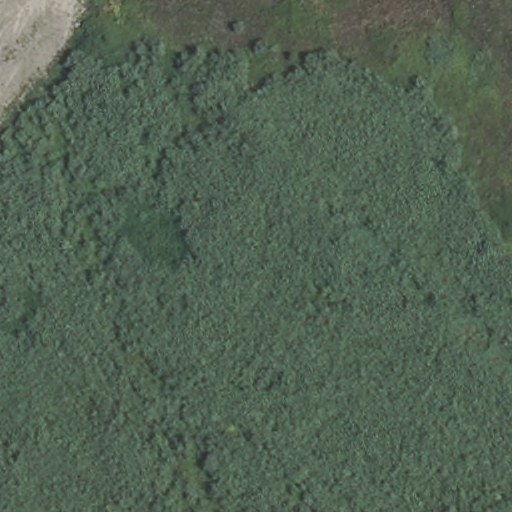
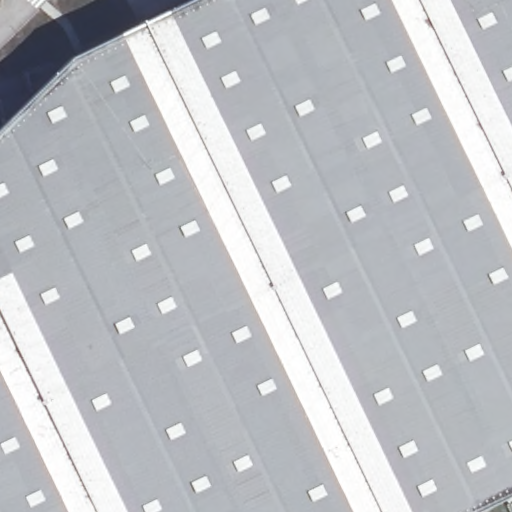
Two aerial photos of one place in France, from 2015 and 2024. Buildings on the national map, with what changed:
new [(29,96),(25,75),(65,60),(190,0),(512,0),(512,492),(471,512),(0,512),(0,124),(0,102),(29,96)]

